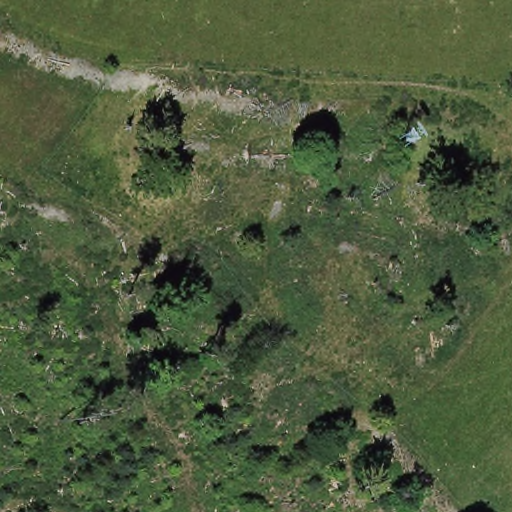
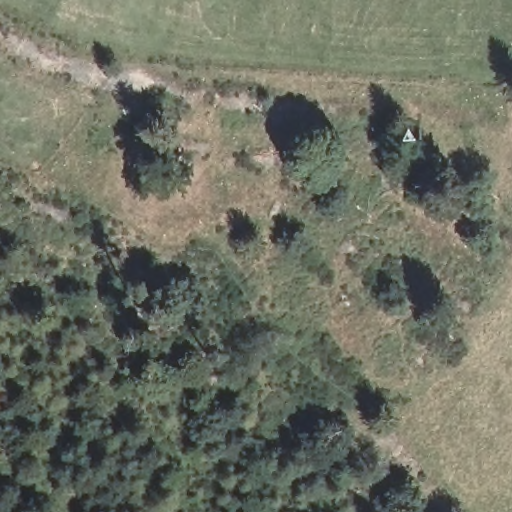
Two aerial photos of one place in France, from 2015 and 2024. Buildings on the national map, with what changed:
[]

